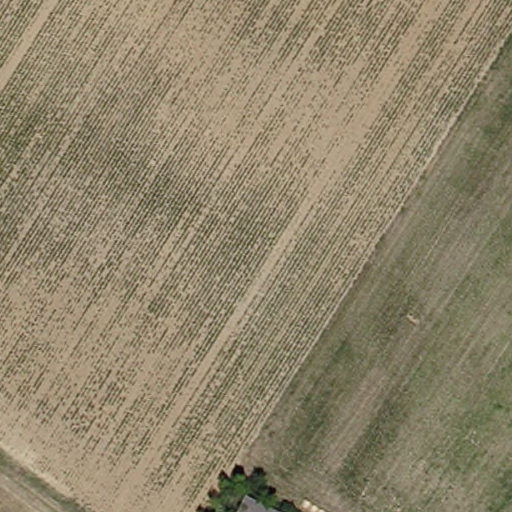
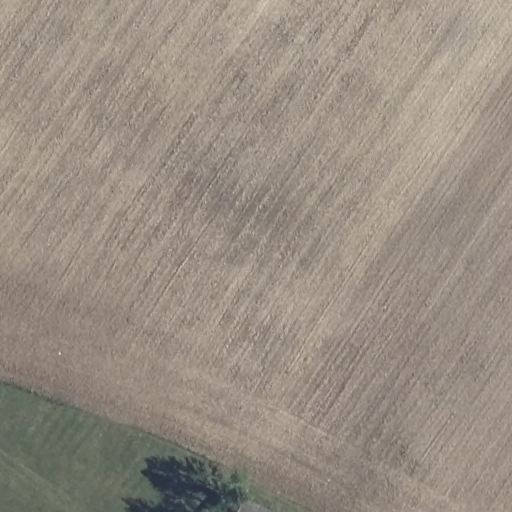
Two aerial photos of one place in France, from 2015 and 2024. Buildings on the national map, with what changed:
unchanged [(249,512),(253,506),(263,512),(249,512)]

